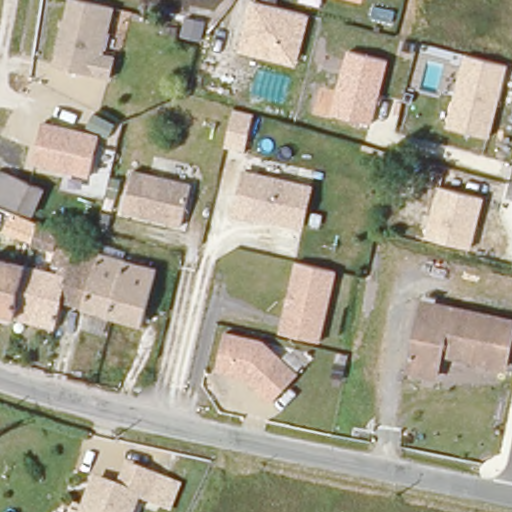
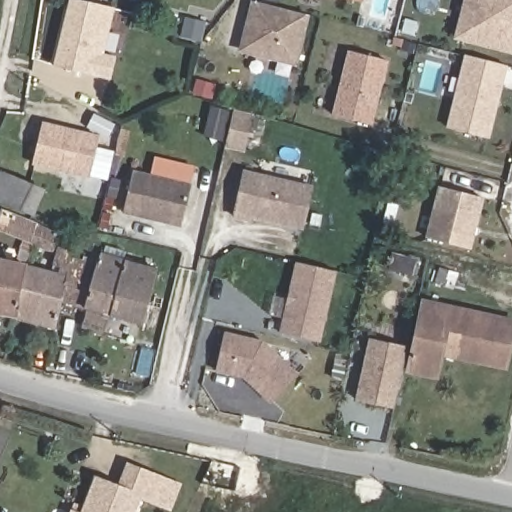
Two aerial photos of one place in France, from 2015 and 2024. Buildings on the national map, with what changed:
unchanged [(116,58),(111,80),(56,66),(64,32),(66,22),(72,0),(82,0),(116,9),(104,54),(116,58)]
unchanged [(363,2),(356,0),(363,0),(363,2)]
new [(453,40),(462,0),(512,0),(512,55),(453,40)]
unchanged [(298,65),(238,51),(250,2),(310,15),(298,65)]
unchanged [(172,20),(169,36),(154,33),(158,17),(172,20)]
unchanged [(374,125),(329,114),(347,49),(391,60),(374,125)]
unchanged [(491,139),(449,128),(450,128),(466,54),(511,66),(491,139)]
unchanged [(188,103),(183,117),(168,113),(172,98),(188,103)]
unchanged [(247,153),(225,149),(233,110),(256,115),(247,153)]
unchanged [(89,180),(32,168),(40,128),(98,139),(89,180)]
unchanged [(55,184),(46,213),(0,197),(0,190),(8,168),(55,184)]
unchanged [(316,186),(306,232),(254,219),(252,222),(234,219),(244,170),(316,186)]
unchanged [(192,188),(183,230),(124,214),(136,172),(192,188)]
unchanged [(471,251),(427,240),(441,187),(484,197),(471,251)]
unchanged [(22,268),(30,225),(68,247),(65,257),(56,290),(59,291),(56,303),(51,333),(12,321),(22,268)]
unchanged [(108,316),(56,303),(59,291),(56,290),(65,257),(101,268),(104,261),(121,265),(156,274),(145,325),(108,316)]
unchanged [(338,272),(322,344),(283,334),(298,263),(338,272)]
unchanged [(12,321),(0,318),(0,264),(22,268),(12,321)]
unchanged [(420,311),(422,300),(512,317),(512,330),(420,311)]
unchanged [(507,354),(415,335),(420,311),(512,330),(507,354)]
unchanged [(264,341),(299,375),(274,408),(248,380),(216,372),(227,332),(264,341)]
unchanged [(505,367),(444,357),(441,378),(407,371),(415,335),(507,354),(505,367)]
new [(407,346),(394,409),(353,400),(367,337),(407,346)]
unchanged [(173,510),(140,497),(134,512),(85,512),(99,481),(121,489),(130,466),(182,486),(173,510)]

